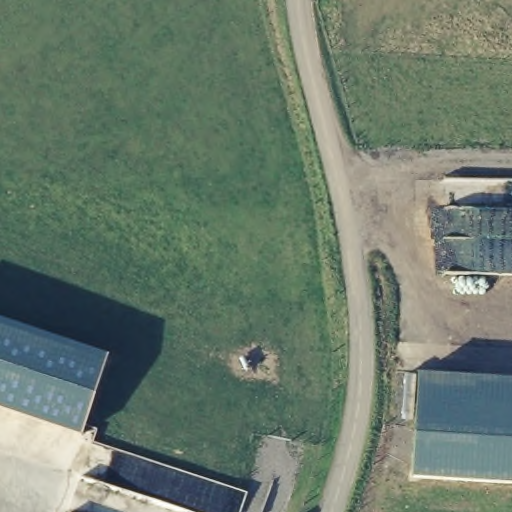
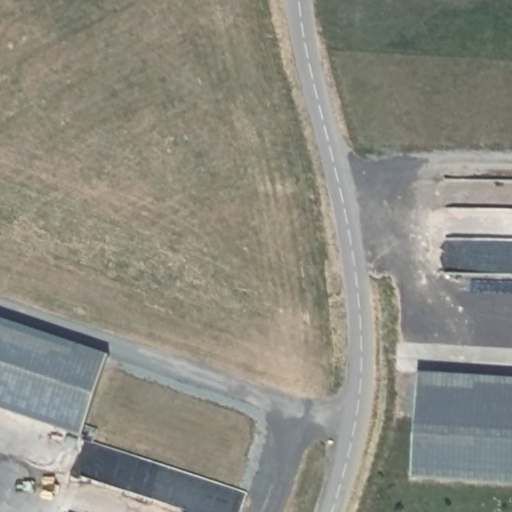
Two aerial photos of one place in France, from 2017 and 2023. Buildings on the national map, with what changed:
unchanged [(82,435),(0,408),(0,319),(109,354),(82,435)]
unchanged [(512,483),(412,478),(420,372),(512,377),(512,483)]

